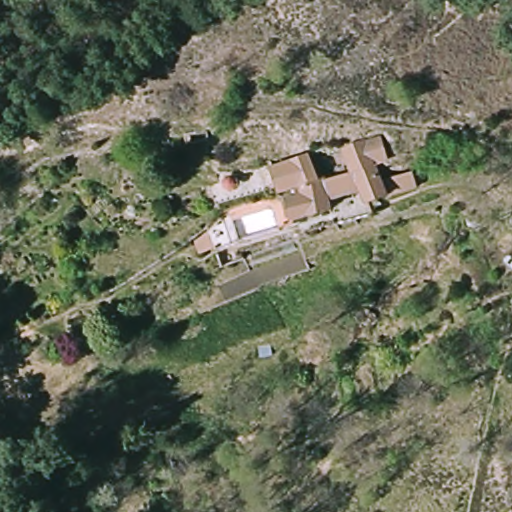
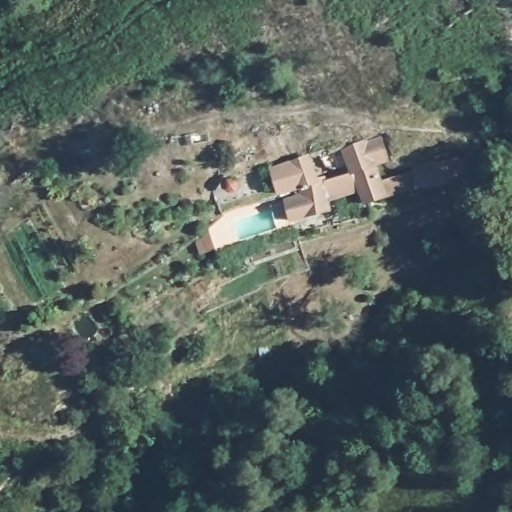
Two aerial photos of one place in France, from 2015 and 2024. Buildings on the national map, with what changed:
unchanged [(380,133),(389,157),(373,162),(378,176),(410,167),(415,186),(362,206),(357,191),(328,199),(330,209),(287,219),(282,194),(299,190),(290,157),(312,151),(321,179),(348,170),(337,145),(380,133)]

